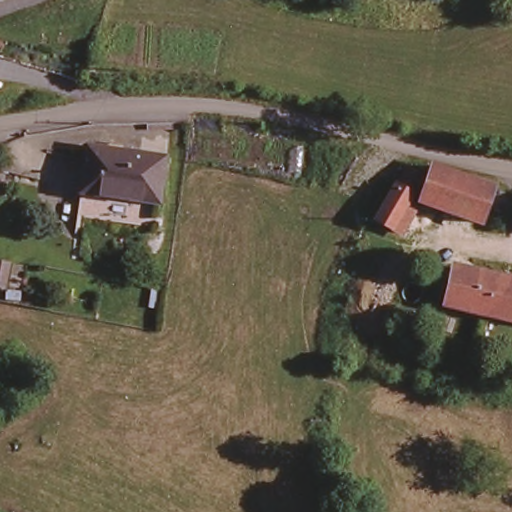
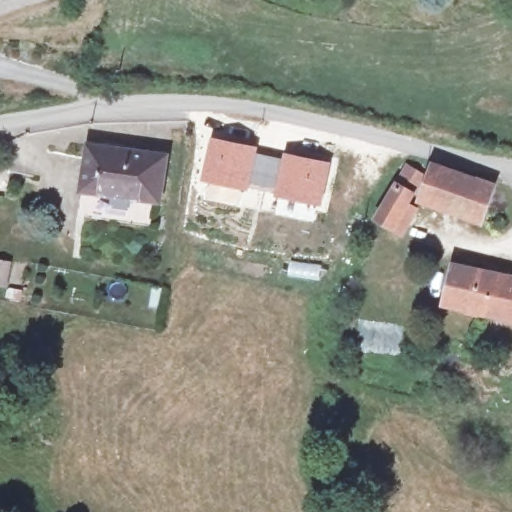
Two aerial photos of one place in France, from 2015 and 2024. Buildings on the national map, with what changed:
new [(259,146),(257,152),(284,158),(285,151),(332,162),(321,206),(275,196),(276,191),(250,184),(249,191),(201,181),(211,137),(259,146)]
unchanged [(85,193),(91,146),(170,154),(164,201),(85,193)]
unchanged [(492,185),(480,221),(420,199),(433,163),(492,185)]
unchanged [(407,169),(421,178),(406,204),(415,211),(400,234),(391,228),(394,222),(384,216),(380,214),(382,211),(407,169)]
unchanged [(450,309),(459,269),(512,281),(512,322),(450,309)]

